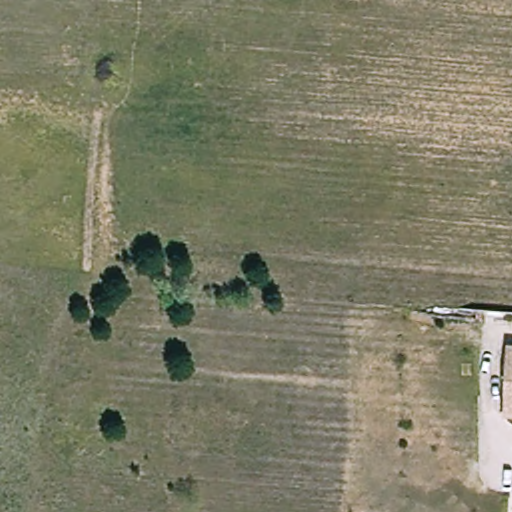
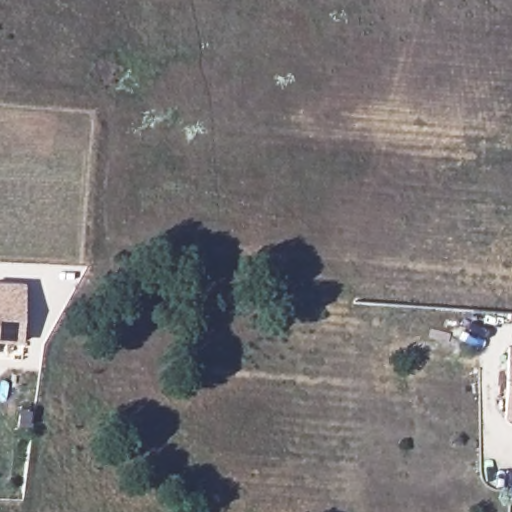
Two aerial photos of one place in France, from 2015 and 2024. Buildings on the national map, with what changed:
new [(23,343),(0,342),(0,282),(26,283),(23,343)]
unchanged [(506,415),(510,347),(512,347),(512,415),(506,415)]

